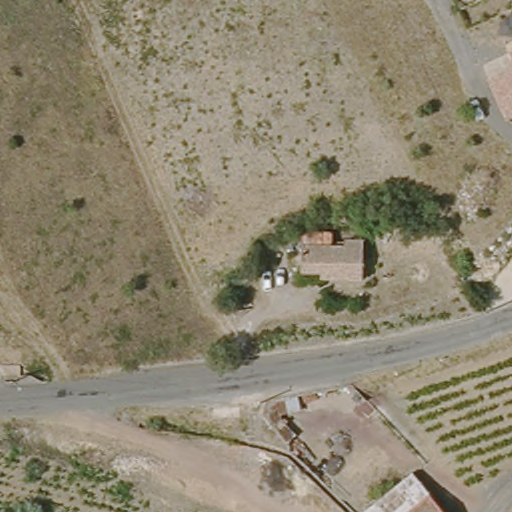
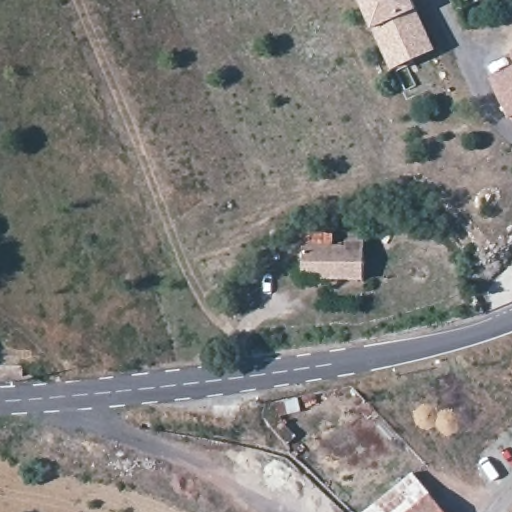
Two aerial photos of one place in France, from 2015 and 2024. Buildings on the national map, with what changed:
new [(436,52),(391,69),(358,0),(412,0),(417,9),(436,52)]
unchanged [(512,70),(512,104),(498,76),(512,70)]
unchanged [(366,244),(364,282),(330,280),(330,274),(303,272),(305,247),(347,249),(348,243),(366,244)]
unchanged [(428,496),(408,512),(365,512),(409,475),(411,474),(428,496)]
unchanged [(428,496),(441,512),(408,512),(428,496)]

